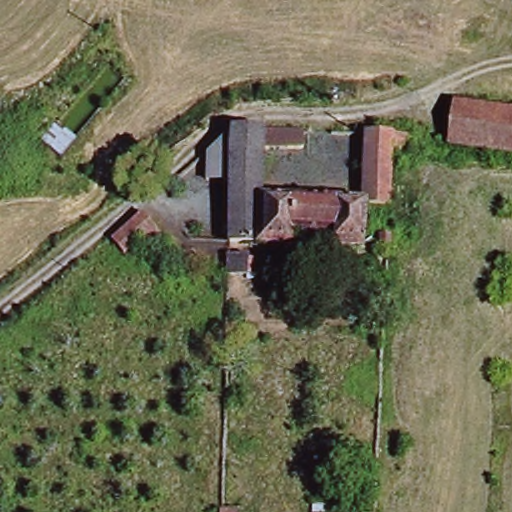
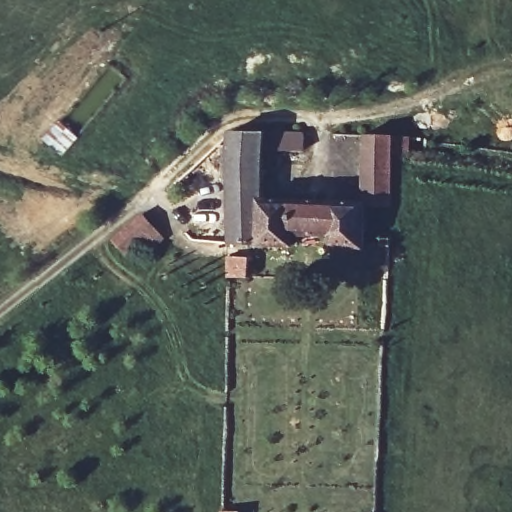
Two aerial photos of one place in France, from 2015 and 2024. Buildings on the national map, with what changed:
unchanged [(82,127),(65,146),(44,126),(62,107),(82,127)]
demolished [(457,108),(512,113),(512,149),(453,144),(457,108)]
unchanged [(223,174),(196,173),(197,159),(230,132),(297,132),(296,146),(258,146),(257,196),(355,196),(360,196),(358,243),(320,241),(320,228),(292,227),(291,240),(222,238),(223,174)]
unchanged [(406,150),(387,150),(383,197),(360,196),(355,196),(358,132),(380,132),(407,132),(407,145),(406,150)]
unchanged [(143,239),(125,254),(107,232),(137,208),(160,235),(148,245),(143,239)]
unchanged [(240,281),(241,260),(267,261),(267,282),(240,281)]

